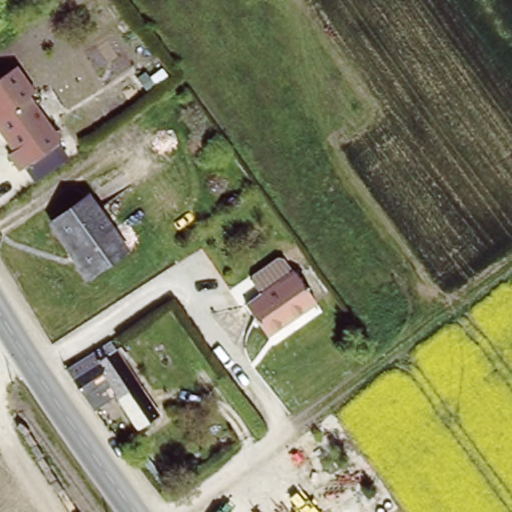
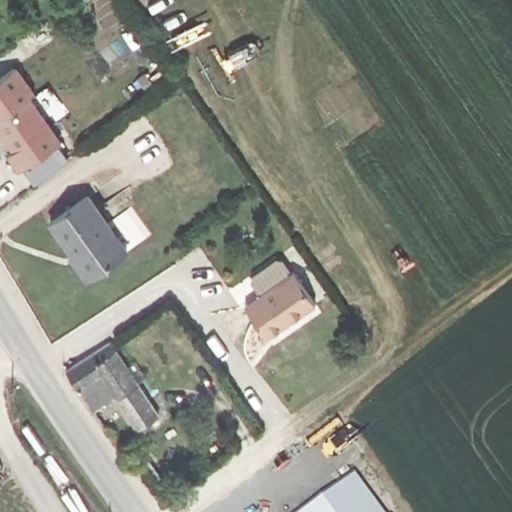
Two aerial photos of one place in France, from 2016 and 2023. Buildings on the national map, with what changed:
unchanged [(11,153),(0,137),(0,77),(15,66),(36,94),(31,97),(61,141),(17,174),(6,157),(11,153)]
unchanged [(72,255),(75,254),(53,220),(93,194),(130,253),(95,275),(87,280),(72,255)]
unchanged [(315,301),(269,333),(245,300),(292,267),(315,301)]
unchanged [(167,424),(145,439),(115,394),(99,404),(73,365),(110,340),(167,424)]
new [(382,512),(299,512),(354,474),(382,512)]

